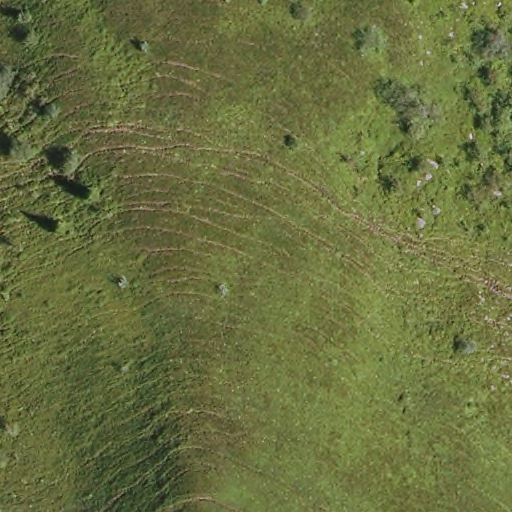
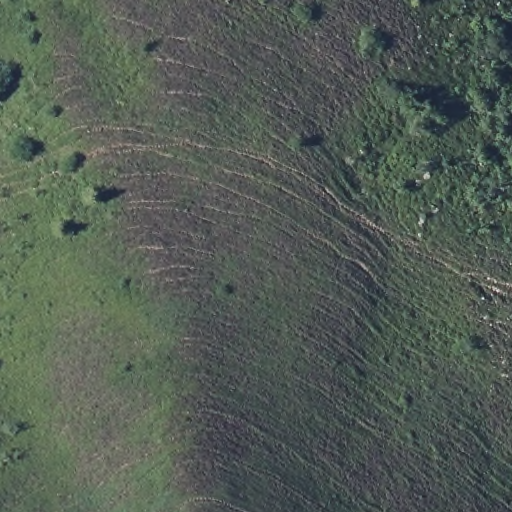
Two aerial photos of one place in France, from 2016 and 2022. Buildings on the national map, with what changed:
[]

